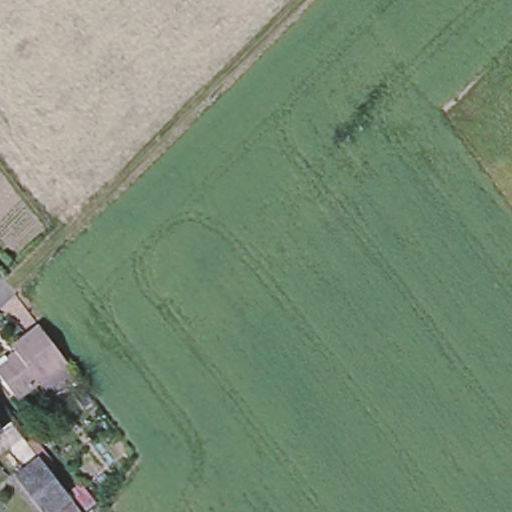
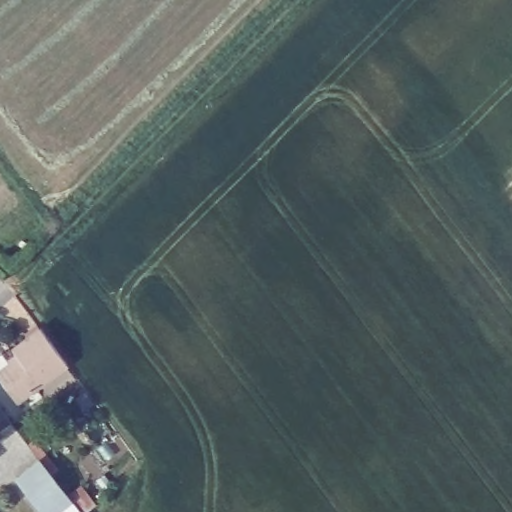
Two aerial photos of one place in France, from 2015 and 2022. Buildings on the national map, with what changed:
unchanged [(12,399),(0,382),(0,365),(12,355),(6,347),(36,325),(63,361),(72,372),(46,391),(37,380),(12,399)]
unchanged [(58,463),(96,500),(81,511),(82,512),(41,512),(13,476),(40,459),(51,473),(58,463)]

